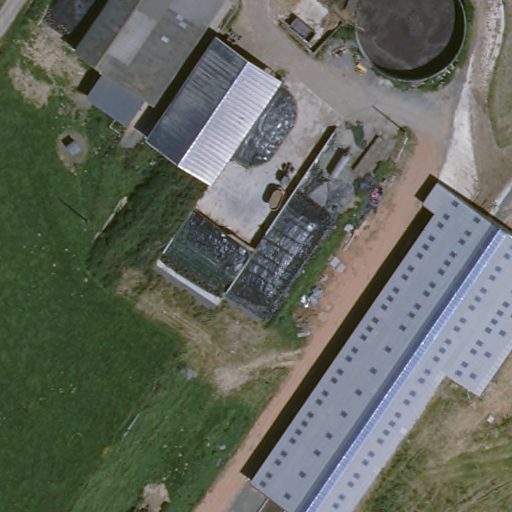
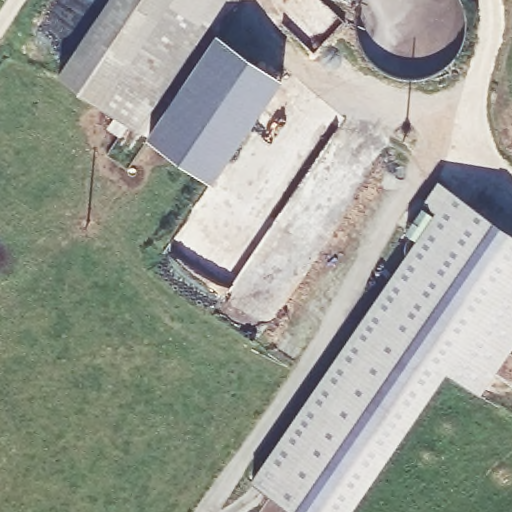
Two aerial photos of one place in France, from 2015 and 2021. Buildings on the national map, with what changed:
unchanged [(85,50),(119,0),(221,0),(135,125),(95,97),(114,70),(85,50)]
unchanged [(220,30),(282,73),(210,176),(188,161),(149,134),(220,30)]
unchanged [(437,209),(425,202),(438,181),(512,232),(512,346),(480,393),(447,370),(350,512),(298,512),(252,479),(437,209)]

